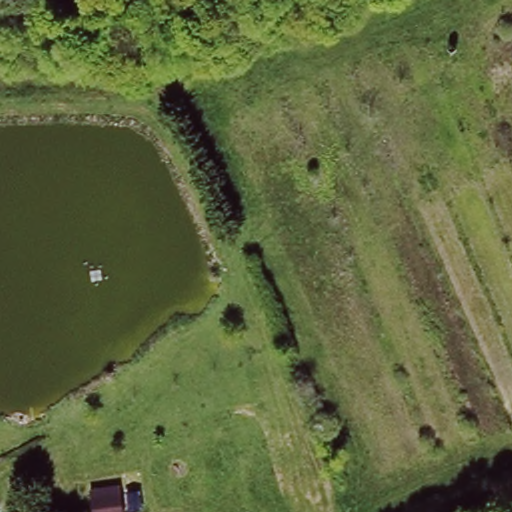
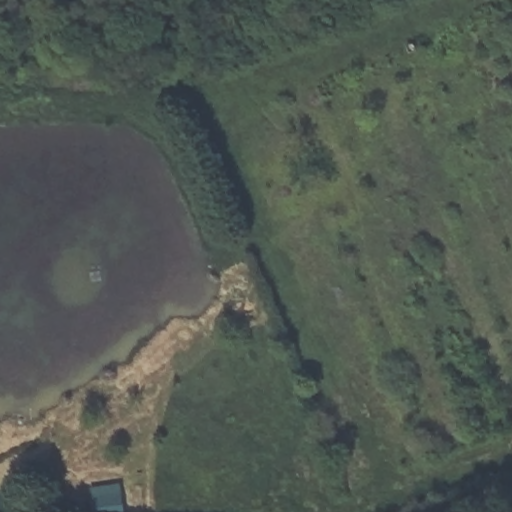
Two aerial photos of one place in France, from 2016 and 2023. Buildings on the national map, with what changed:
unchanged [(118,485),(121,510),(103,512),(89,512),(86,488),(118,485)]

